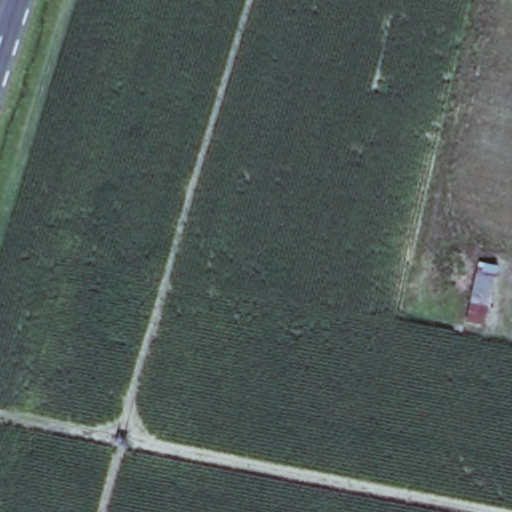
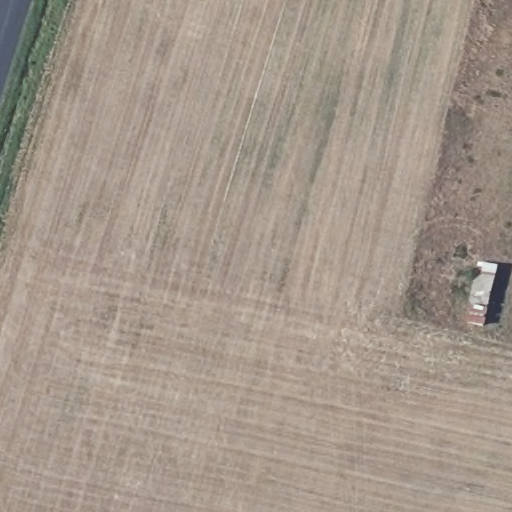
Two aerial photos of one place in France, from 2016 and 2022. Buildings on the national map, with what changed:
unchanged [(507,269),(500,320),(474,316),(482,264),(507,269)]

